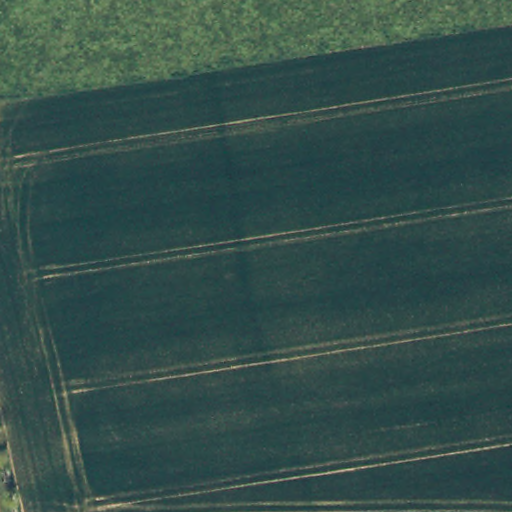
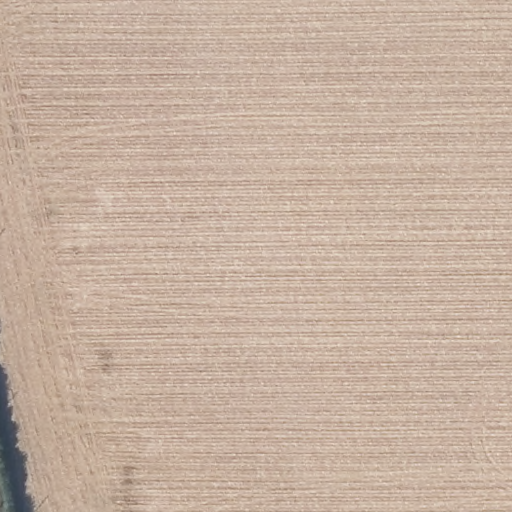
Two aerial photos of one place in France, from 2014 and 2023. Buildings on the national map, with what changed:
[]

